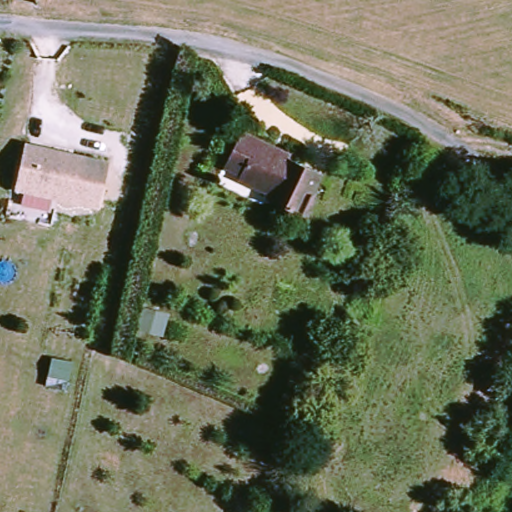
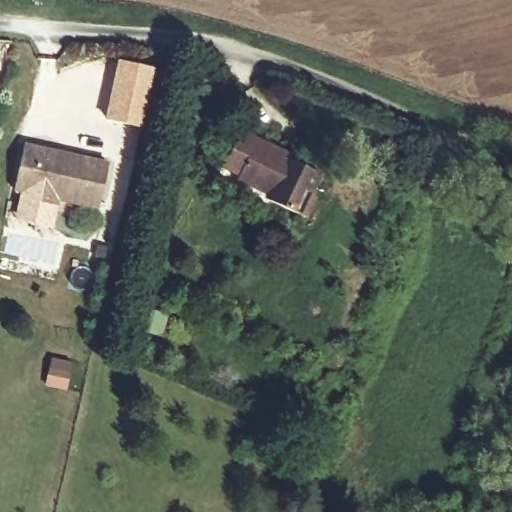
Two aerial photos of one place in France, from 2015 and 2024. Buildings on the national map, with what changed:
new [(137,128),(103,121),(117,61),(151,70),(137,128)]
unchanged [(265,197),(267,192),(238,177),(245,164),(229,156),(242,129),(289,154),(286,159),(320,176),(309,197),(315,200),(305,219),(265,197)]
unchanged [(110,165),(101,209),(15,189),(26,144),(110,165)]

